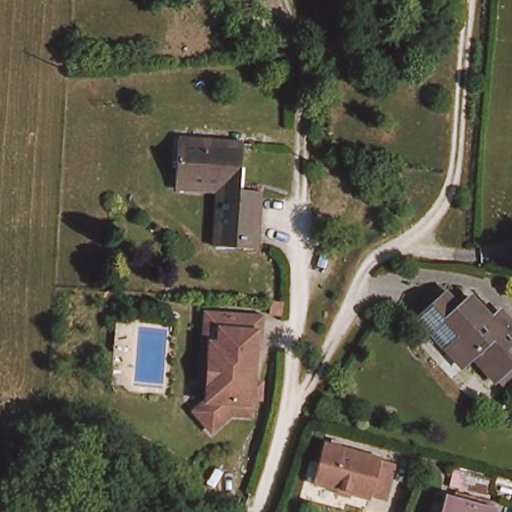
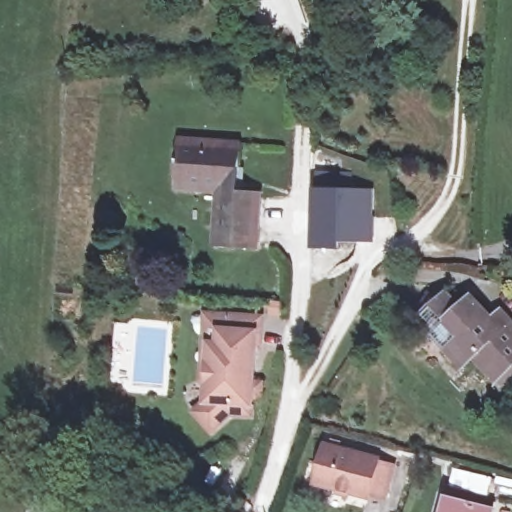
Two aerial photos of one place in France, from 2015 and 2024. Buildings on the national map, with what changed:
unchanged [(241,144),(239,204),(252,205),(251,250),(203,248),(204,228),(212,229),(214,202),(181,201),(183,141),(241,144)]
new [(375,242),(358,241),(315,240),(316,191),(318,191),(319,175),(351,176),(351,192),(372,193),(371,219),(375,219),(375,242)]
unchanged [(404,332),(426,301),(434,307),(450,318),(459,305),(485,323),(491,313),(512,328),(512,365),(501,381),(474,362),(465,375),(428,349),(412,338),(404,332)]
unchanged [(261,400),(253,400),(252,418),(231,416),(212,433),(195,414),(208,403),(208,389),(203,382),(204,367),(207,316),(222,317),(262,320),(260,350),(256,350),(254,385),(262,386),(261,400)]
unchanged [(122,389),(102,387),(107,324),(127,326),(122,389)]
unchanged [(370,455),(369,458),(385,462),(376,494),(360,490),(360,493),(308,479),(318,442),(370,455)]
unchanged [(450,505),(474,512),(447,512),(450,505)]

